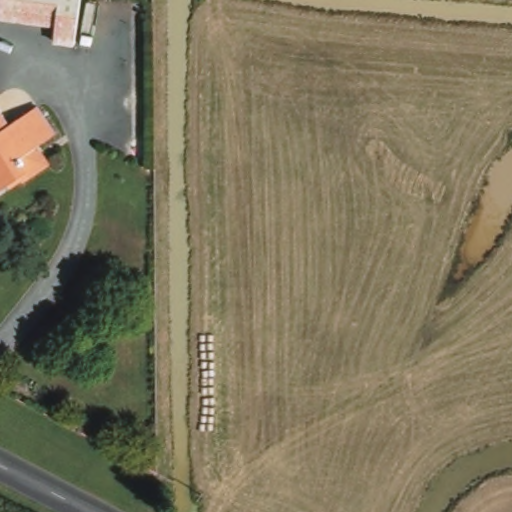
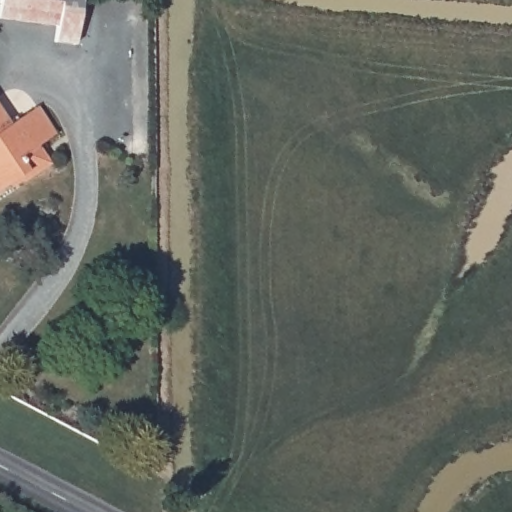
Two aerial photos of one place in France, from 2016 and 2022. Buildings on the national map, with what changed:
unchanged [(56,51),(58,34),(1,25),(5,0),(85,0),(77,54),(56,51)]
unchanged [(0,192),(0,111),(10,126),(39,108),(57,135),(37,147),(47,163),(27,175),(0,192)]

